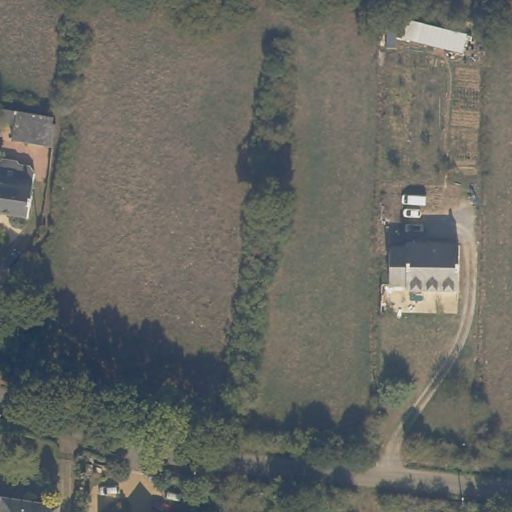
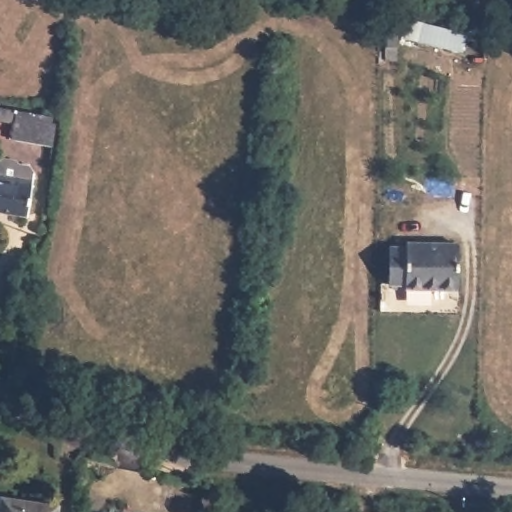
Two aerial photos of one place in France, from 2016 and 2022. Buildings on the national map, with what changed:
unchanged [(9,139),(10,106),(54,114),(49,146),(9,139)]
unchanged [(33,175),(27,216),(0,212),(0,170),(33,175)]
unchanged [(460,285),(407,286),(405,281),(391,282),(392,244),(406,244),(408,240),(460,241),(460,285)]
unchanged [(62,512),(2,512),(5,491),(64,498),(62,512)]
unchanged [(161,512),(140,512),(140,509),(161,512)]

